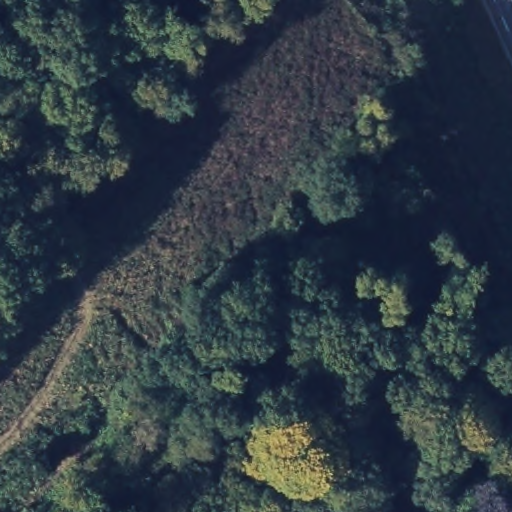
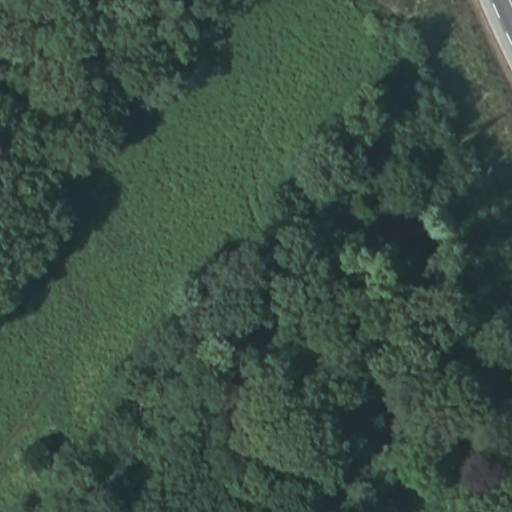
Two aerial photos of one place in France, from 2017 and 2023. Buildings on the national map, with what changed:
unchanged [(404,512),(362,512),(356,505),(382,485),(404,512)]

